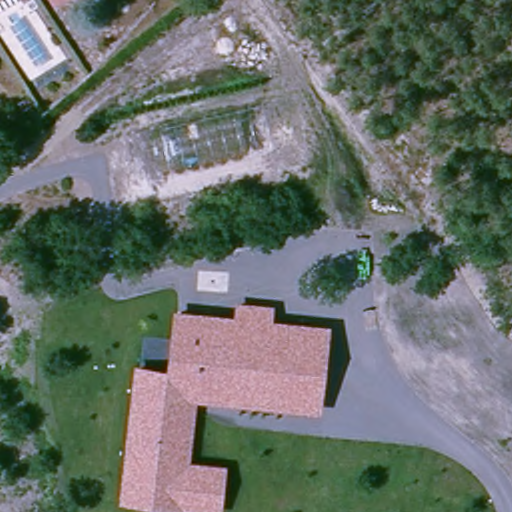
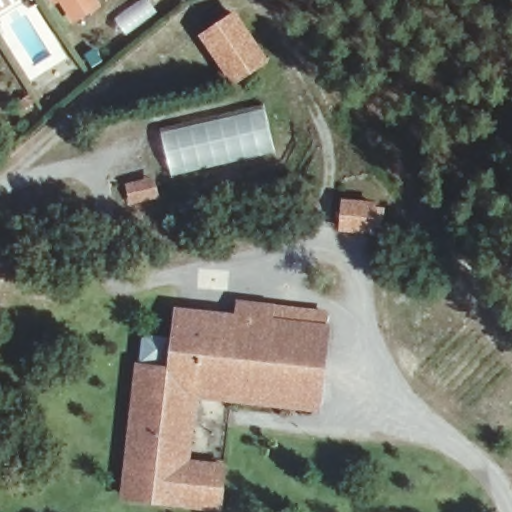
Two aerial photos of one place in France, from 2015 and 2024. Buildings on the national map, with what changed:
demolished [(51,0),(84,0),(87,7),(61,23),(51,0)]
new [(55,0),(57,0),(55,1),(55,0)]
new [(73,23),(58,0),(99,0),(101,4),(73,23)]
new [(235,11),(270,59),(233,85),(200,36),(235,11)]
new [(273,147),(171,171),(160,134),(266,108),(273,147)]
new [(341,199),(377,201),(375,235),(338,231),(341,199)]
unchanged [(167,365),(176,308),(234,315),(236,300),(276,303),(275,321),(333,327),(322,416),(196,402),(191,459),(229,464),(222,512),(197,512),(119,502),(134,365),(167,365)]

